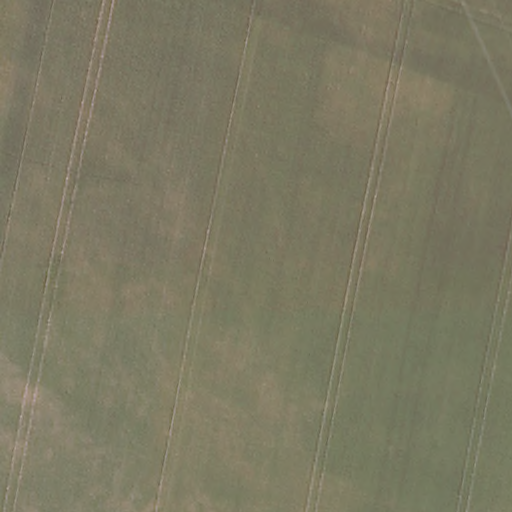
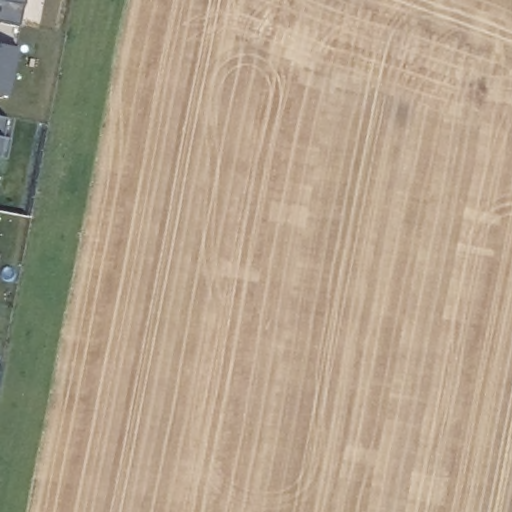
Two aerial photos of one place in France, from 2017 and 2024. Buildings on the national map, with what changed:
new [(22,19),(0,15),(0,0),(25,0),(22,19)]
new [(9,96),(0,94),(0,43),(18,47),(9,96)]
new [(7,157),(0,156),(0,116),(7,117),(3,136),(10,137),(7,157)]

